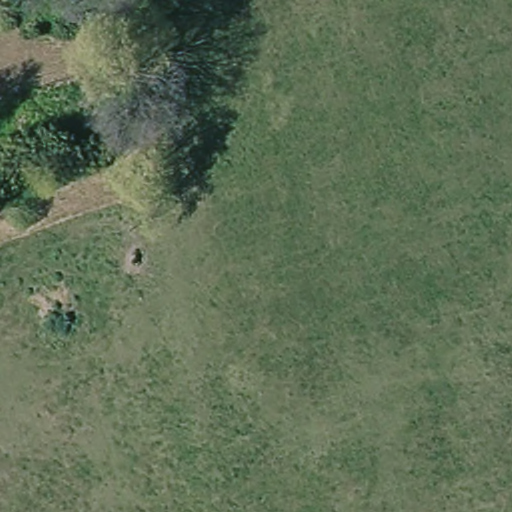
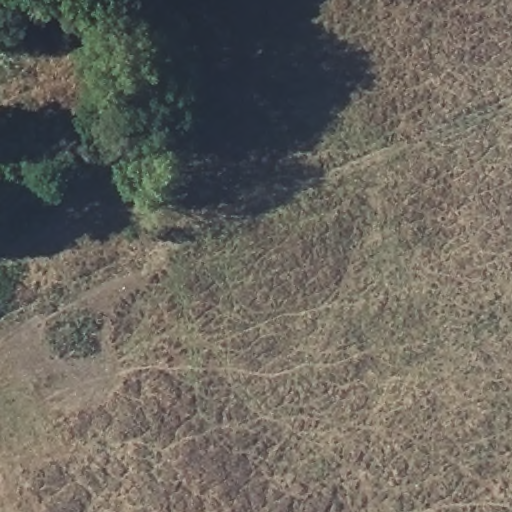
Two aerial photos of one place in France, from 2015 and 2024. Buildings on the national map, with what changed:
[]

